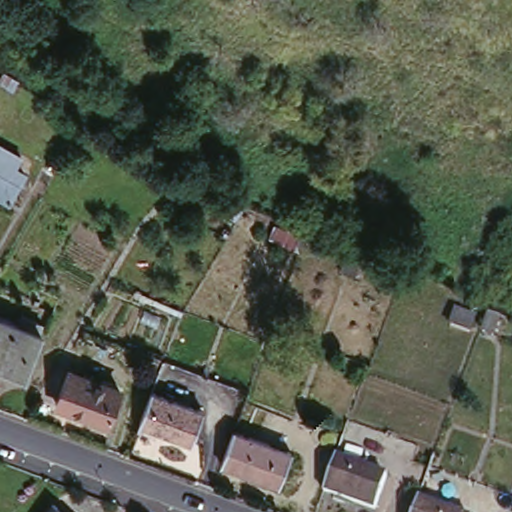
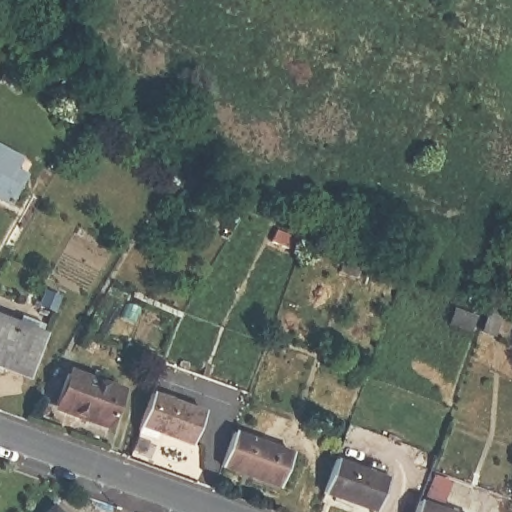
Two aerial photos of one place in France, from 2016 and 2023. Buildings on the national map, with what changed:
unchanged [(0,199),(0,143),(25,156),(19,168),(30,174),(10,205),(0,199)]
unchanged [(237,222),(208,202),(219,187),(247,206),(237,222)]
unchanged [(358,286),(340,280),(343,268),(361,274),(358,286)]
unchanged [(40,332),(26,373),(0,364),(0,319),(40,332)]
unchanged [(493,341),(483,337),(490,320),(500,323),(493,341)]
unchanged [(122,388),(110,422),(55,403),(67,368),(122,388)]
unchanged [(205,410),(191,442),(140,424),(153,390),(205,410)]
unchanged [(292,451),(280,485),(224,464),(235,431),(292,451)]
unchanged [(389,478),(376,510),(325,491),(336,458),(389,478)]
unchanged [(450,512),(416,512),(420,501),(450,512)]
unchanged [(55,504),(63,512),(47,512),(55,504)]

